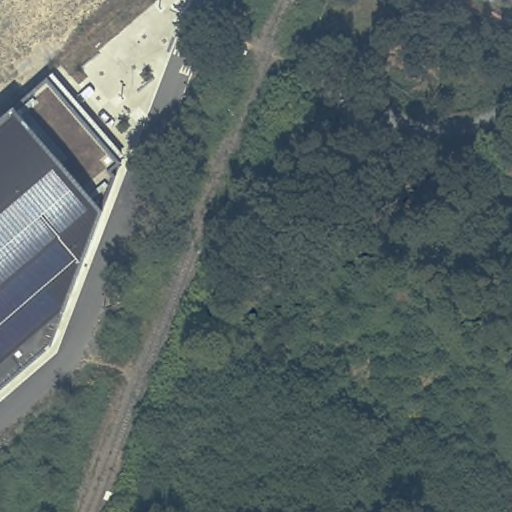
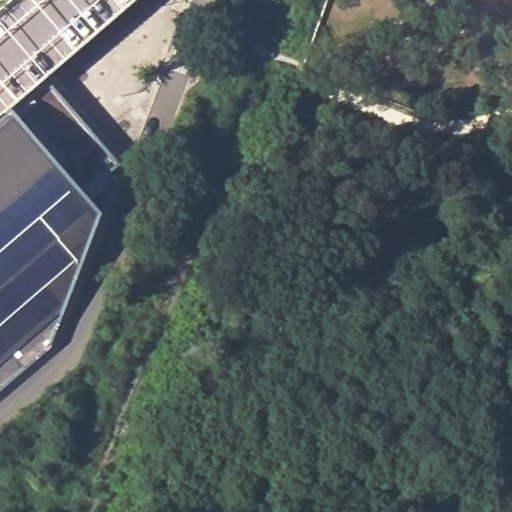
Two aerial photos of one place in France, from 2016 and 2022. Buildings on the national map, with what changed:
new [(37,85),(12,107),(0,118),(0,0),(135,0),(45,78),(37,85)]
unchanged [(100,215),(53,342),(0,388),(0,118),(12,107),(45,78),(113,161),(100,215)]
unchanged [(495,166),(512,158),(512,188),(508,191),(495,166)]

